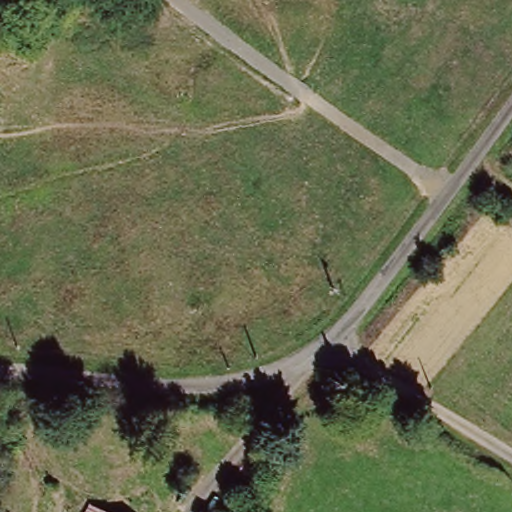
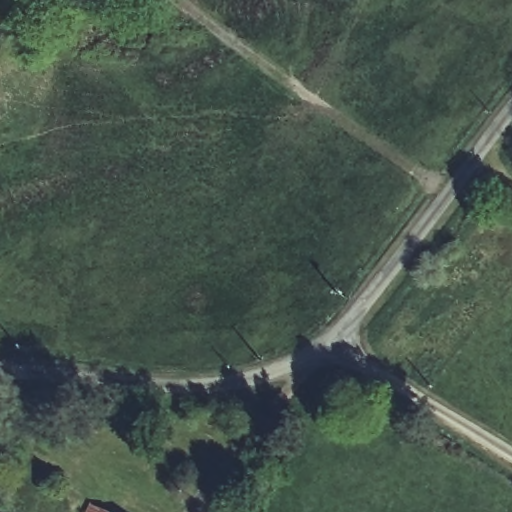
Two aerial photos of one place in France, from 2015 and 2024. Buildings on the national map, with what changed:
unchanged [(91,505),(105,512),(89,512),(91,505)]

